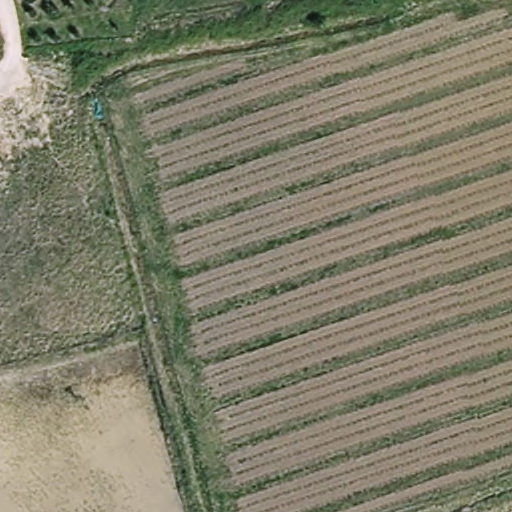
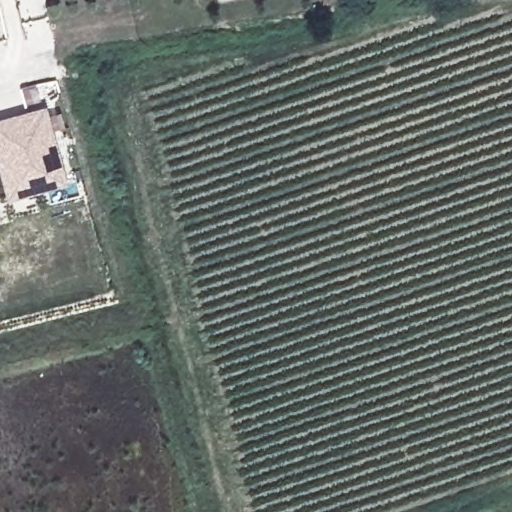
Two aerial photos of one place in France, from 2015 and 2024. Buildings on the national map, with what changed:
new [(20,88),(35,84),(42,106),(46,105),(49,115),(60,112),(65,127),(53,130),(68,183),(7,201),(0,175),(0,118),(27,110),(20,88)]

